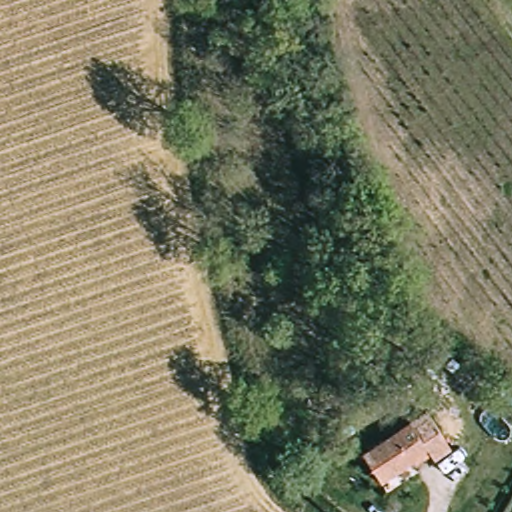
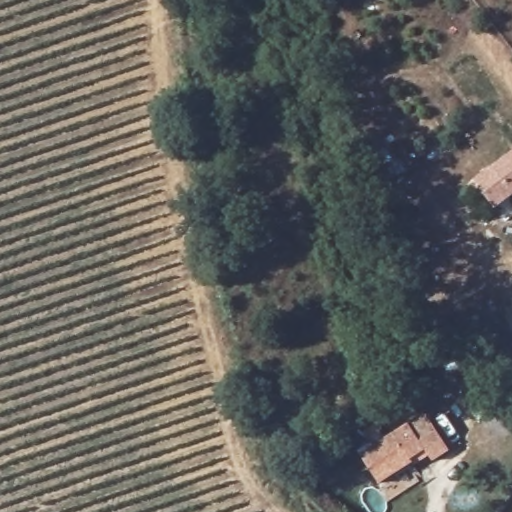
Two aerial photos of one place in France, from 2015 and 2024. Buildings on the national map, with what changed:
new [(512,195),(494,207),(474,180),(512,152),(512,195)]
unchanged [(434,458),(421,466),(424,472),(389,495),(368,464),(415,431),(430,420),(454,452),(439,464),(434,458)]

